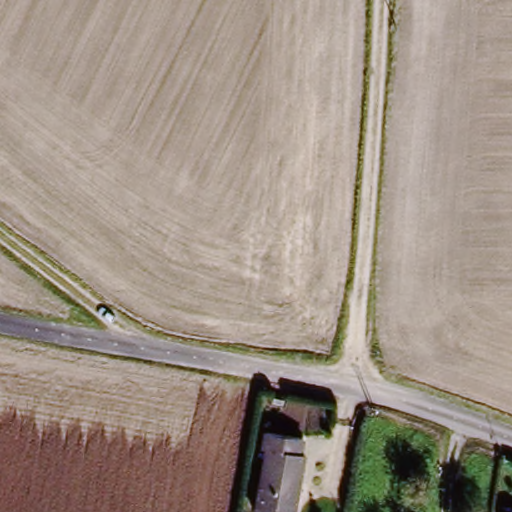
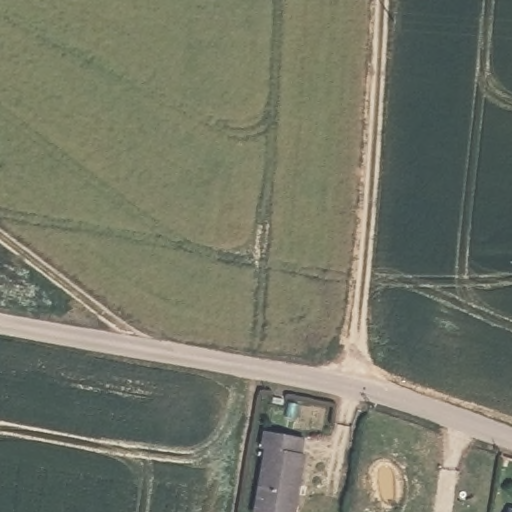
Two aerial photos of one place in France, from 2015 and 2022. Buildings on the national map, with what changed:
unchanged [(301,442),(298,460),(305,461),(296,512),(260,512),(270,456),(263,454),(265,437),(301,442)]

